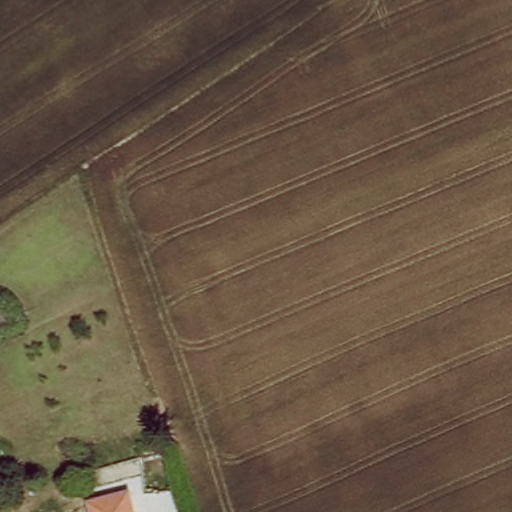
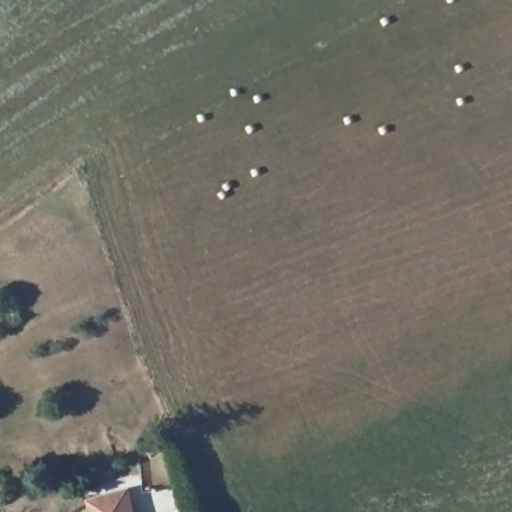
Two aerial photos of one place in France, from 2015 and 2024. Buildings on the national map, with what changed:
unchanged [(131,512),(92,512),(90,506),(127,495),(131,512)]

